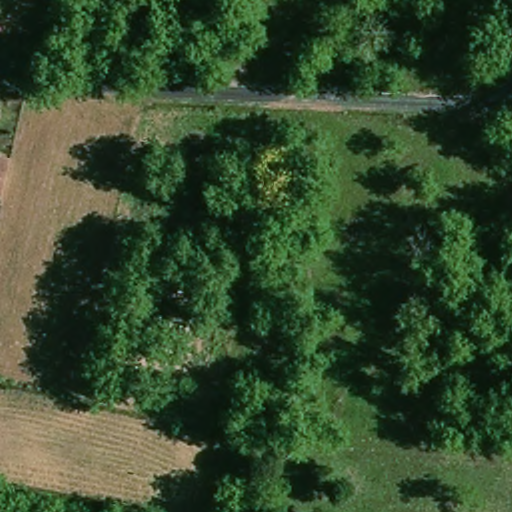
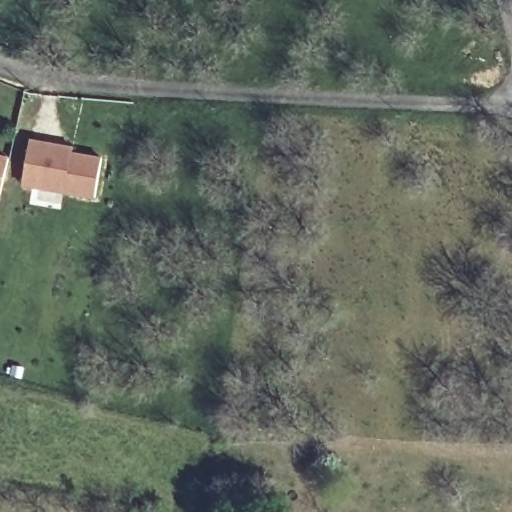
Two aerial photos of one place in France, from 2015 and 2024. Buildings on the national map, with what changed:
new [(32,140),(75,146),(74,151),(104,156),(99,195),(26,185),(32,140)]
unchanged [(3,203),(0,202),(0,163),(13,167),(3,203)]

